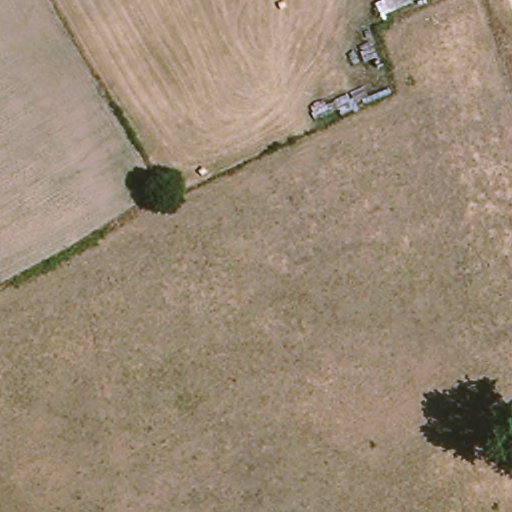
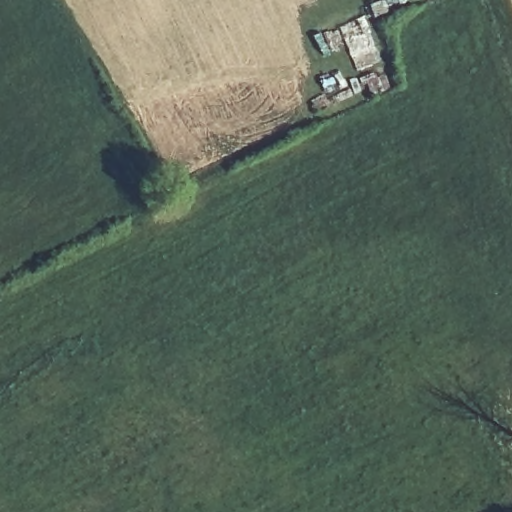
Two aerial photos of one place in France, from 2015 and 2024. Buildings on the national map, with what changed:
[]

